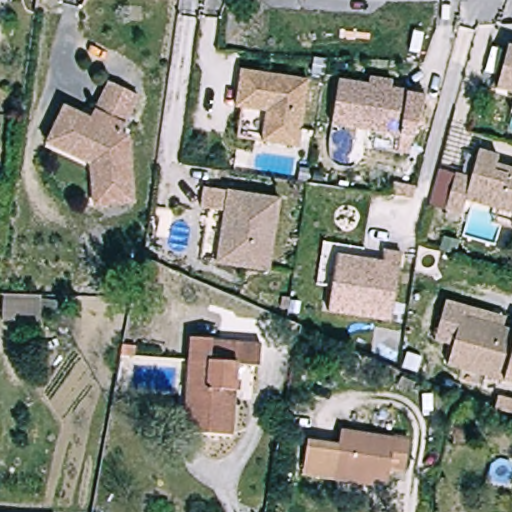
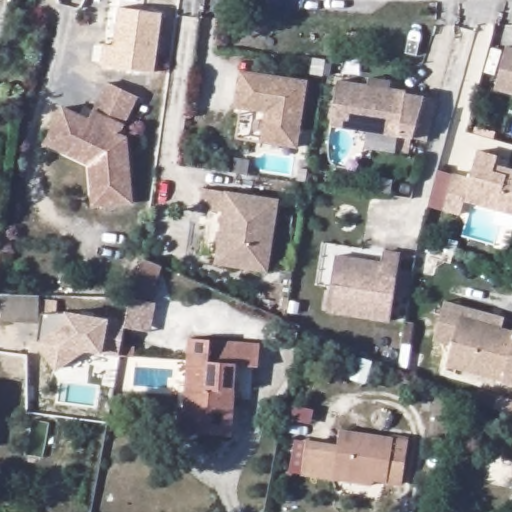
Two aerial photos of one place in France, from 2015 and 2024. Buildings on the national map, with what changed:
new [(113,45),(119,7),(163,13),(154,72),(101,65),(103,45),(113,45)]
unchanged [(512,96),(497,92),(508,49),(512,50),(512,96)]
unchanged [(247,108),(237,106),(243,72),(312,82),(302,146),(267,141),(242,137),(247,108)]
unchanged [(338,79),(407,88),(407,94),(426,96),(414,139),(409,139),(407,155),(364,150),(366,132),(331,128),(338,79)]
unchanged [(48,135),(60,109),(85,120),(102,82),(132,95),(115,134),(124,138),(129,200),(90,203),(87,165),(43,145),(48,135)]
unchanged [(465,220),(448,215),(458,180),(474,184),(481,156),(502,161),(499,170),(512,174),(512,217),(469,205),(465,220)]
unchanged [(268,276),(216,268),(224,216),(202,214),(205,194),(279,205),(268,276)]
unchanged [(315,295),(322,252),(383,262),(381,273),(335,265),(330,296),(315,295)]
unchanged [(145,298),(131,293),(142,258),(159,265),(145,298)]
unchanged [(335,265),(381,273),(383,262),(400,265),(389,331),(326,321),(330,296),(335,265)]
unchanged [(449,358),(455,337),(436,332),(446,294),(506,310),(503,321),(512,324),(512,375),(506,373),(449,358)]
new [(0,296),(37,296),(37,320),(0,320),(0,296)]
new [(118,357),(82,350),(54,370),(35,343),(40,308),(63,308),(125,320),(118,357)]
unchanged [(181,408),(188,409),(191,340),(261,342),(260,365),(239,364),(236,431),(203,430),(180,429),(181,408)]
unchanged [(502,391),(512,394),(512,407),(498,403),(502,391)]
unchanged [(304,475),(308,448),(338,452),(341,435),(411,446),(407,475),(391,473),(388,487),(334,479),(304,475)]

